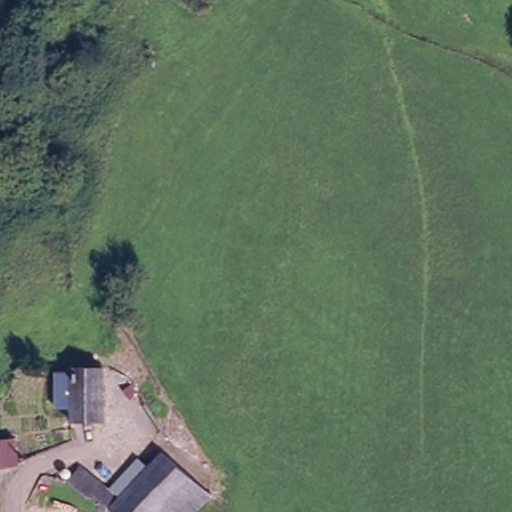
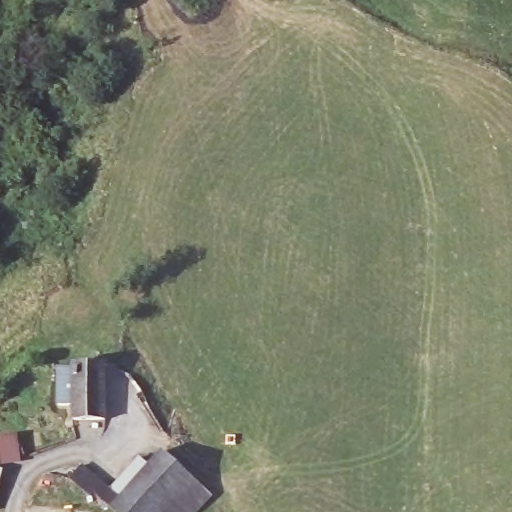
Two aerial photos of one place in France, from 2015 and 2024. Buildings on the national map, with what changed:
unchanged [(78,426),(77,413),(58,412),(59,378),(57,378),(58,363),(70,363),(112,363),(112,427),(78,426)]
unchanged [(0,440),(3,441),(19,442),(20,463),(2,463),(0,463),(0,440)]
unchanged [(151,512),(148,510),(147,512),(114,512),(90,488),(65,474),(77,461),(116,493),(128,477),(121,471),(139,450),(146,457),(160,442),(211,491),(191,512),(151,512)]
unchanged [(2,496),(3,510),(3,512),(0,512),(0,483),(2,483),(2,496)]

